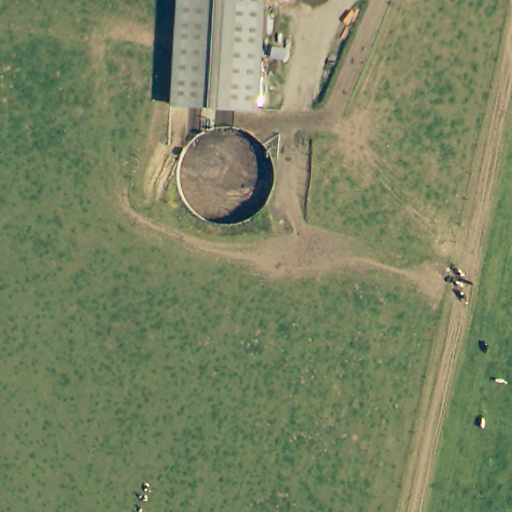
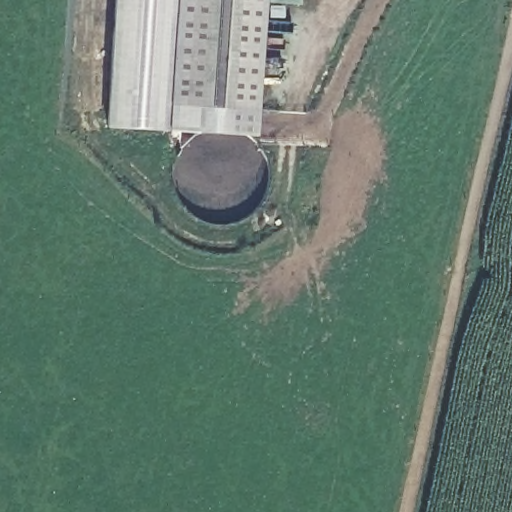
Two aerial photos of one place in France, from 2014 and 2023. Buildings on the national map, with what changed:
new [(258,103),(256,136),(106,127),(115,0),(180,0),(173,97),(258,103)]
unchanged [(173,97),(180,0),(266,0),(258,103),(173,97)]
new [(267,0),(298,0),(298,4),(266,2),(267,0)]

